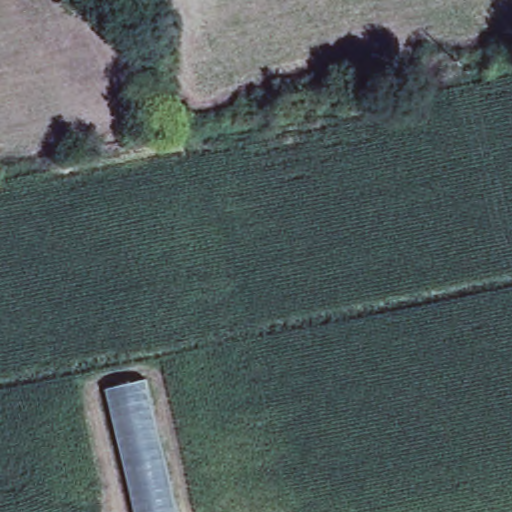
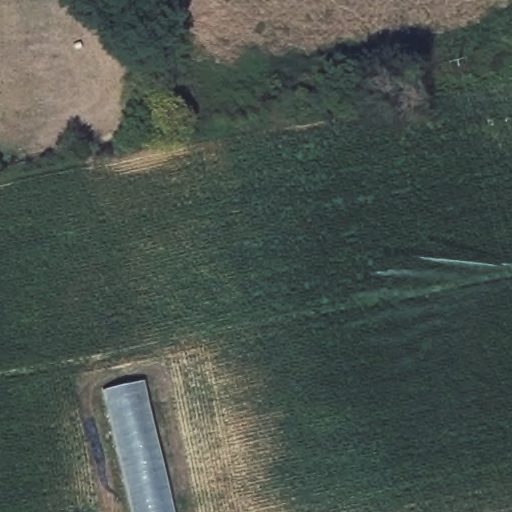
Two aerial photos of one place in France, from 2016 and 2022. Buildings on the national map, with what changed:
unchanged [(145,372),(177,512),(125,512),(95,383),(145,372)]

